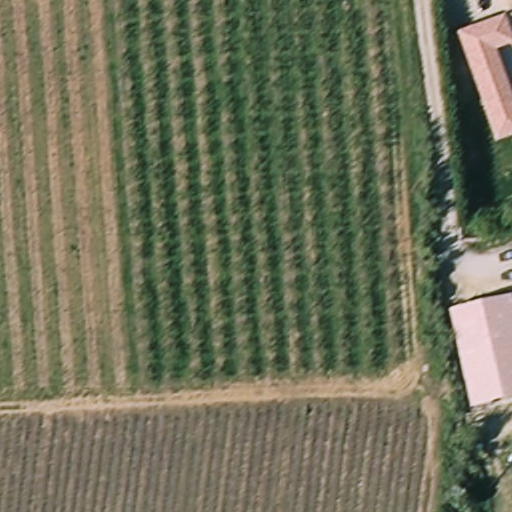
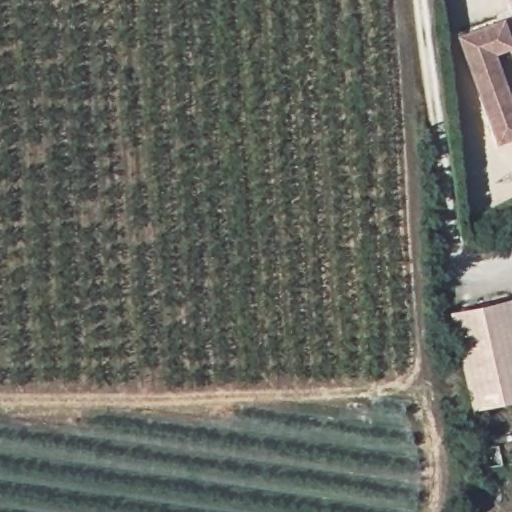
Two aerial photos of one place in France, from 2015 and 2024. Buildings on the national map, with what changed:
unchanged [(498,54),(512,99),(512,139),(495,144),(456,36),(504,18),(512,45),(512,48),(498,54)]
unchanged [(448,312),(512,298),(512,402),(470,411),(448,312)]

